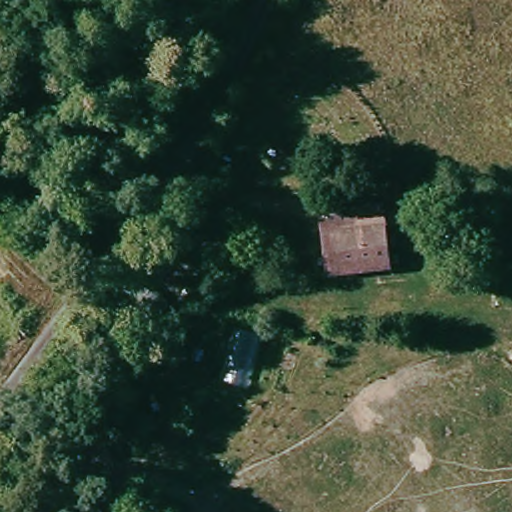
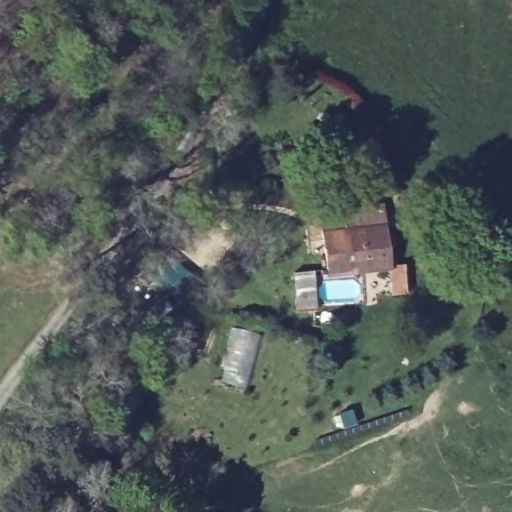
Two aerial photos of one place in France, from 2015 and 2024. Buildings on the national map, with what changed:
unchanged [(392,270),(324,270),(323,206),(390,209),(390,224),(392,270)]

